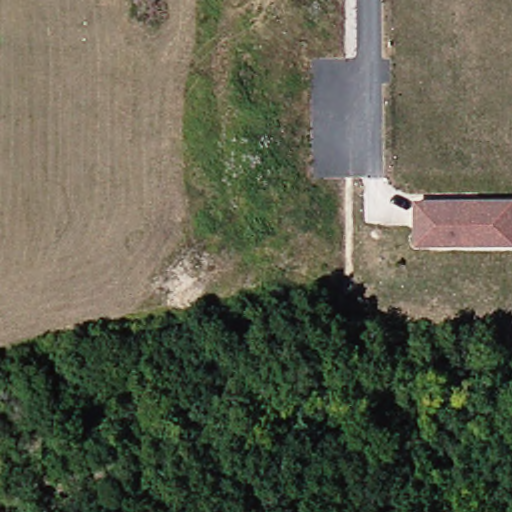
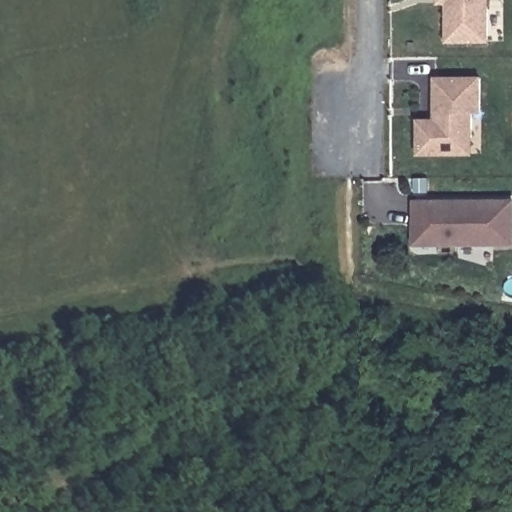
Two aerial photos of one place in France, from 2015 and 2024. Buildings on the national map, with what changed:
new [(444,41),(444,4),(436,3),(436,0),(485,0),(486,41),(444,41)]
new [(417,156),(417,119),(433,119),(433,76),(483,76),(483,114),(475,114),(474,156),(417,156)]
unchanged [(414,199),(512,197),(512,244),(414,248),(414,199)]

